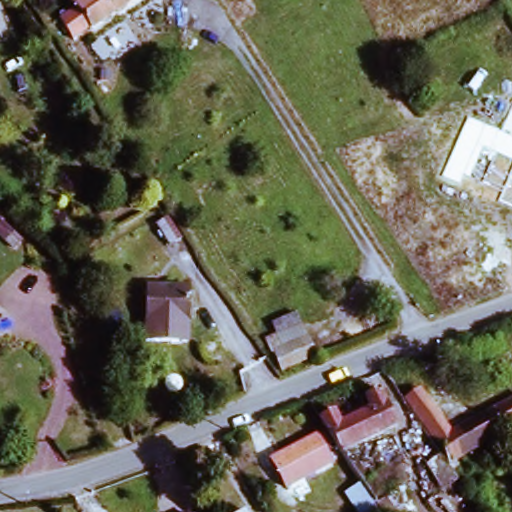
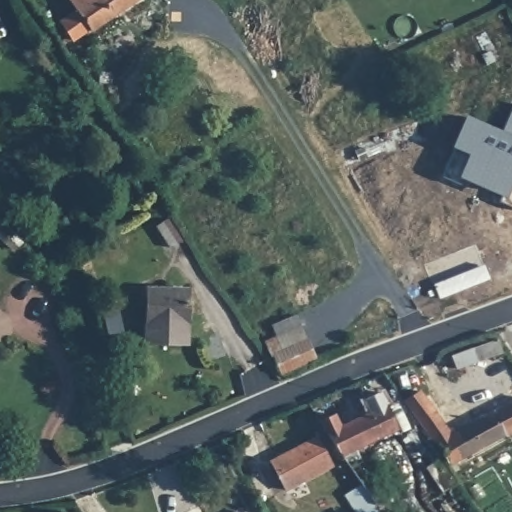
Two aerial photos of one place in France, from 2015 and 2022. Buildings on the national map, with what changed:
unchanged [(81,9),(84,13),(73,20),(60,0),(61,0),(96,0),(81,9)]
unchanged [(94,34),(92,31),(76,42),(65,25),(73,20),(84,13),(81,9),(96,0),(146,0),(94,34)]
new [(501,195),(463,179),(461,185),(442,177),(466,114),(503,129),(512,109),(512,208),(498,201),(501,195)]
unchanged [(164,249),(151,226),(163,219),(176,242),(164,249)]
unchanged [(186,290),(188,323),(150,326),(148,293),(186,290)]
unchanged [(279,362),(274,363),(268,343),(305,331),(316,368),(284,379),(279,362)]
unchanged [(464,345),(469,357),(448,365),(444,353),(464,345)]
unchanged [(406,404),(426,392),(454,435),(436,448),(406,404)]
unchanged [(366,497),(340,456),(319,422),(337,414),(342,425),(366,412),(362,401),(378,394),(394,431),(354,450),(384,498),(392,512),(375,512),(372,506),(366,497)]
unchanged [(428,472),(444,461),(436,448),(454,435),(496,411),(508,434),(503,437),(449,469),(459,483),(442,494),(428,472)]
unchanged [(269,463),(300,449),(316,443),(329,471),(314,478),(283,492),(269,463)]

